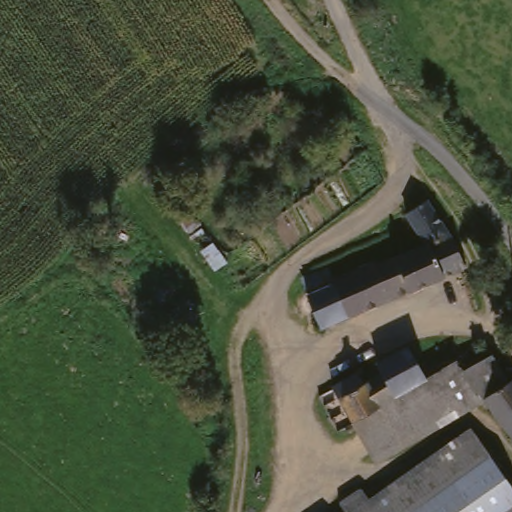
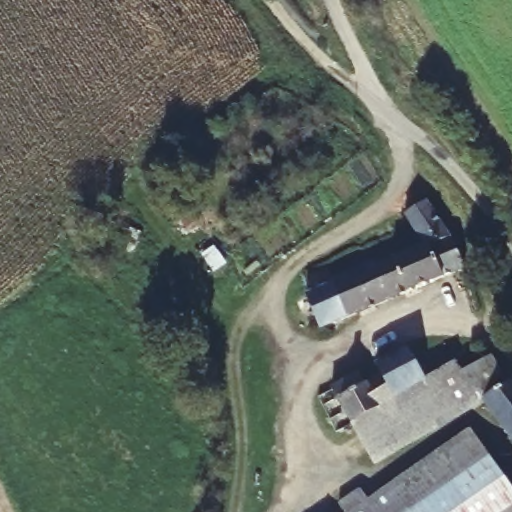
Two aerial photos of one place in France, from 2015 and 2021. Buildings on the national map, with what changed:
unchanged [(383,265),(432,247),(410,216),(428,201),(458,242),(461,241),(476,271),(323,326),(307,277),(332,269),(336,280),(346,276),(382,263),(383,265)]
unchanged [(420,356),(436,387),(403,404),(385,417),(356,432),(338,396),(367,383),(372,394),(392,383),(387,372),(420,356)]
unchanged [(507,366),(512,374),(512,401),(492,413),(489,409),(475,384),(507,366)]
unchanged [(375,467),(356,432),(385,417),(403,404),(436,387),(441,384),(463,372),(466,376),(472,385),(475,384),(489,409),(430,439),(404,452),(375,467)]
unchanged [(492,413),(512,401),(512,436),(492,413)]
unchanged [(482,433),(501,464),(421,512),(352,512),(348,507),(344,499),(363,488),(367,485),(370,488),(375,498),(388,491),(403,482),(422,470),(447,455),(482,433)]
unchanged [(512,482),(512,512),(421,512),(501,464),(512,482)]

